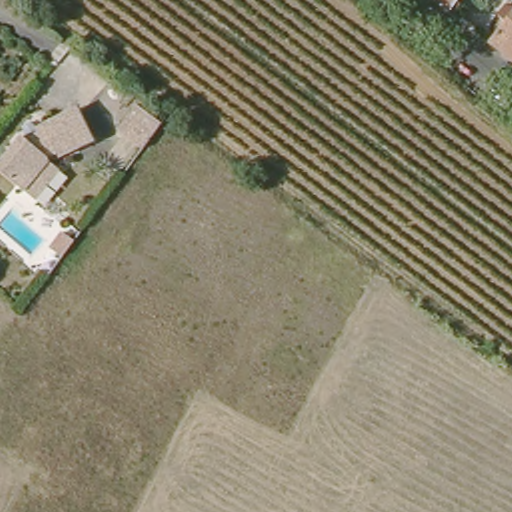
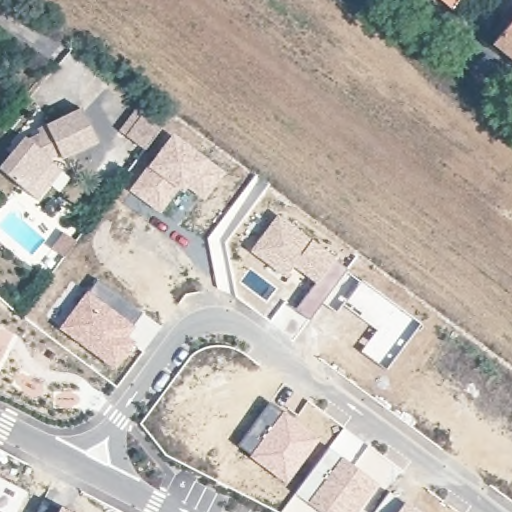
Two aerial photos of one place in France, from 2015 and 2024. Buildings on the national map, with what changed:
unchanged [(454,5),(448,0),(458,0),(454,5)]
unchanged [(510,7),(506,3),(508,0),(512,0),(512,9),(510,7)]
unchanged [(503,28),(504,25),(508,21),(510,18),(512,16),(512,44),(499,33),(503,28)]
unchanged [(0,150),(5,143),(19,125),(24,130),(46,117),(43,111),(78,93),(96,125),(59,146),(55,141),(46,145),(45,149),(47,151),(58,159),(33,189),(23,181),(0,161),(0,150)]
unchanged [(113,120),(131,93),(156,110),(138,137),(113,120)]
new [(171,131),(223,171),(202,199),(184,185),(159,214),(127,190),(171,131)]
new [(276,213),(334,258),(314,283),(294,268),(286,278),(248,251),(276,213)]
new [(314,283),(334,258),(347,268),(308,320),(306,318),(294,309),(314,283)]
new [(376,329),(342,304),(335,312),(322,301),(346,270),(358,280),(360,278),(419,323),(386,368),(361,349),(376,329)]
new [(141,313),(132,324),(134,325),(127,335),(136,341),(114,370),(58,328),(86,289),(88,291),(97,280),(141,313)]
new [(249,453),(238,444),(269,401),(282,409),(249,453)]
new [(321,437),(286,484),(248,456),(282,409),(321,437)]
new [(356,512),(319,512),(294,493),(328,447),(378,483),(356,512)]
new [(15,512),(0,512),(0,478),(27,491),(15,512)]
new [(404,498),(421,512),(394,512),(403,500),(404,498)]
new [(58,505),(71,512),(37,512),(43,500),(57,508),(58,505)]

